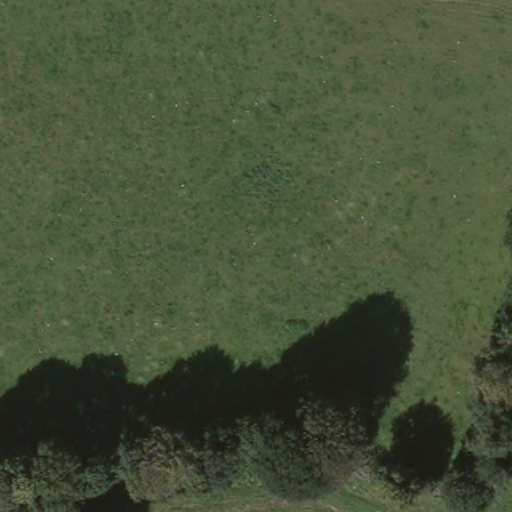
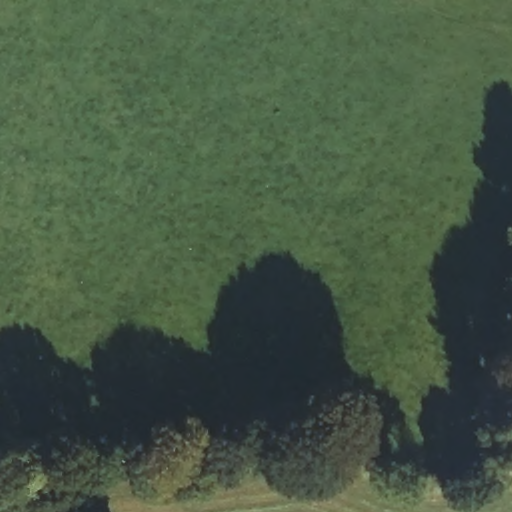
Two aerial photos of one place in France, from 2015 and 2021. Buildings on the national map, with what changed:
[]

